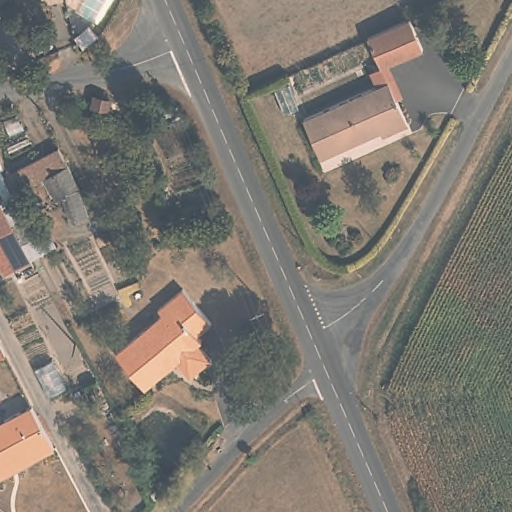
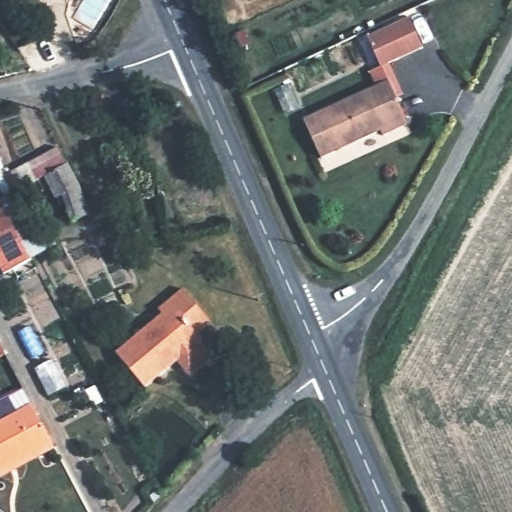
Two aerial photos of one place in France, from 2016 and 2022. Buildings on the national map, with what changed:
unchanged [(407,19),(409,19),(411,22),(422,48),(381,67),(367,37),(407,19)]
unchanged [(385,75),(407,119),(382,131),(380,126),(318,157),(298,120),(385,75)]
unchanged [(3,177),(58,146),(69,165),(47,176),(60,199),(38,208),(57,245),(31,257),(26,246),(2,200),(14,195),(3,177)]
unchanged [(0,161),(0,157),(2,160),(0,161)]
unchanged [(77,177),(86,196),(92,215),(74,222),(60,199),(47,176),(69,165),(77,177)]
unchanged [(26,246),(22,247),(0,257),(0,201),(2,200),(26,246)]
unchanged [(155,306),(181,285),(207,320),(192,332),(198,340),(141,385),(111,350),(159,312),(155,306)]
unchanged [(30,405),(53,447),(37,456),(33,449),(0,468),(0,422),(30,405)]

